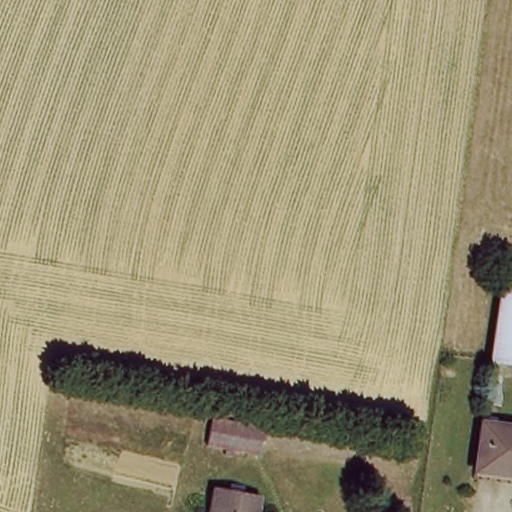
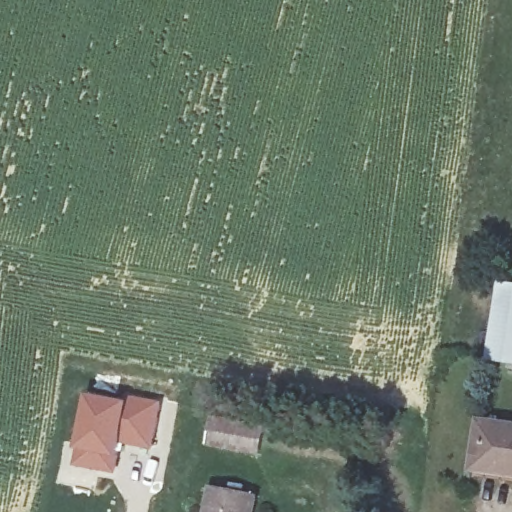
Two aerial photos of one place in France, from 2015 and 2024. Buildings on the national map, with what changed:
unchanged [(497,360),(509,281),(512,282),(512,363),(497,360)]
new [(89,395),(130,401),(122,445),(116,475),(75,467),(89,395)]
new [(130,401),(131,395),(163,401),(153,450),(122,445),(130,401)]
unchanged [(476,466),(484,418),(512,423),(512,474),(476,466)]
unchanged [(261,429),(258,456),(227,449),(203,445),(208,420),(261,429)]
unchanged [(217,512),(208,507),(211,485),(259,494),(257,512),(217,512)]

